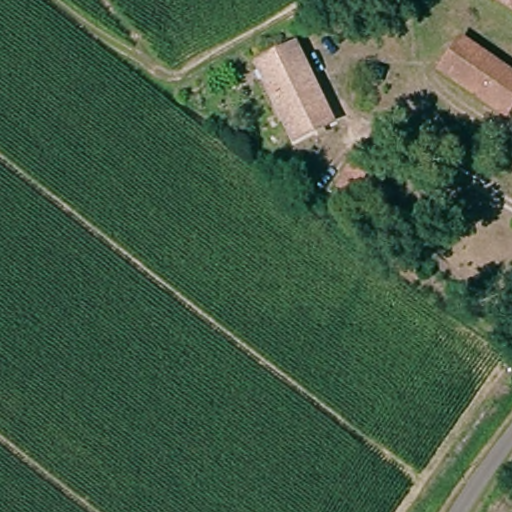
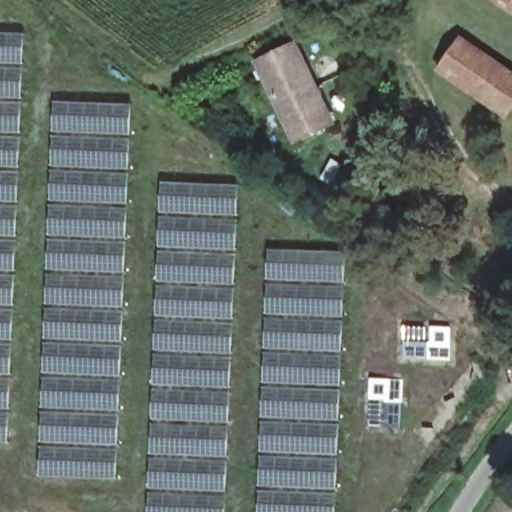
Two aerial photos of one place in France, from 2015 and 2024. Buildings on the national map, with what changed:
unchanged [(512,12),(495,0),(512,0),(512,12)]
new [(24,33),(10,441),(0,441),(0,32),(24,33)]
unchanged [(461,44),(512,76),(512,101),(504,115),(443,78),(461,44)]
unchanged [(261,70),(300,51),(329,115),(291,135),(261,70)]
new [(132,104),(117,477),(38,476),(54,100),(132,104)]
unchanged [(350,203),(333,186),(357,162),(375,180),(350,203)]
new [(226,512),(149,512),(162,182),(238,185),(226,512)]
new [(335,512),(257,512),(268,249),(345,252),(335,512)]

